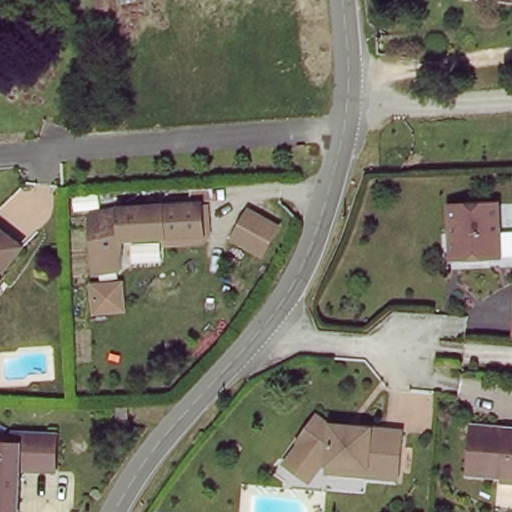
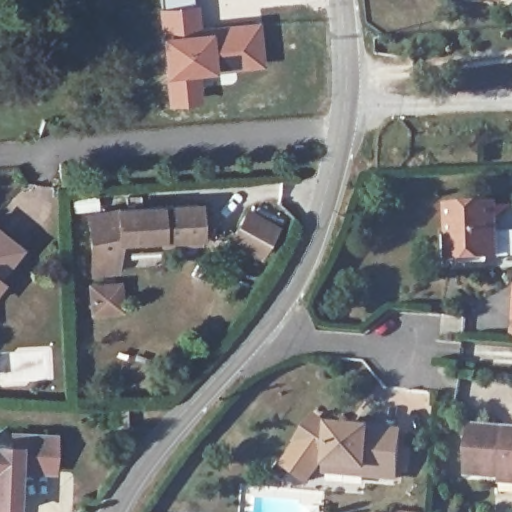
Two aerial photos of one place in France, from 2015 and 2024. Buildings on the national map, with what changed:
new [(159,34),(158,6),(158,0),(194,0),(195,2),(198,1),(201,28),(159,34)]
unchanged [(500,0),(512,0),(512,3),(500,4),(500,0)]
new [(262,21),(265,65),(216,71),(212,26),(262,21)]
new [(201,28),(212,26),(216,71),(199,74),(163,76),(159,34),(201,28)]
new [(199,74),(202,101),(167,106),(163,76),(199,74)]
unchanged [(104,268),(96,269),(91,213),(124,204),(201,197),(204,229),(164,233),(163,231),(122,234),(121,256),(120,266),(104,268)]
unchanged [(251,203),(283,223),(262,258),(227,241),(251,203)]
unchanged [(449,233),(448,207),(495,204),(497,257),(459,259),(450,260),(449,233)]
unchanged [(0,267),(0,226),(20,242),(0,267)]
unchanged [(0,276),(0,275),(1,275),(0,276)]
unchanged [(90,314),(88,281),(124,279),(124,311),(90,314)]
unchanged [(130,421),(120,421),(120,407),(121,407),(130,406),(130,421)]
unchanged [(334,466),(334,463),(331,462),(303,442),(320,418),(333,426),(405,432),(402,478),(370,476),(333,473),(334,466)]
unchanged [(502,483),(503,476),(467,473),(470,423),(507,425),(507,430),(512,430),(512,483),(502,483)]
unchanged [(15,435),(57,437),(56,473),(21,472),(19,512),(0,512),(0,445),(14,446),(15,435)]

